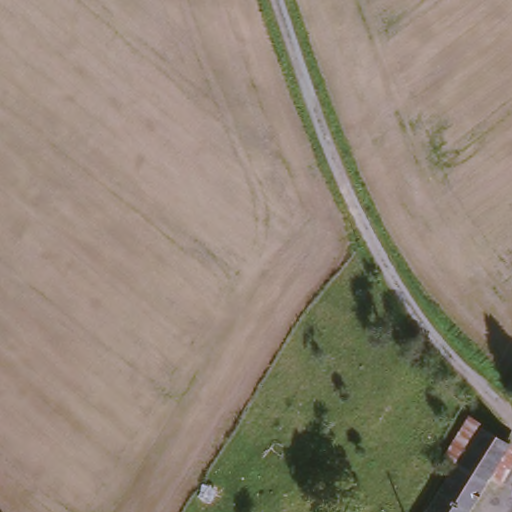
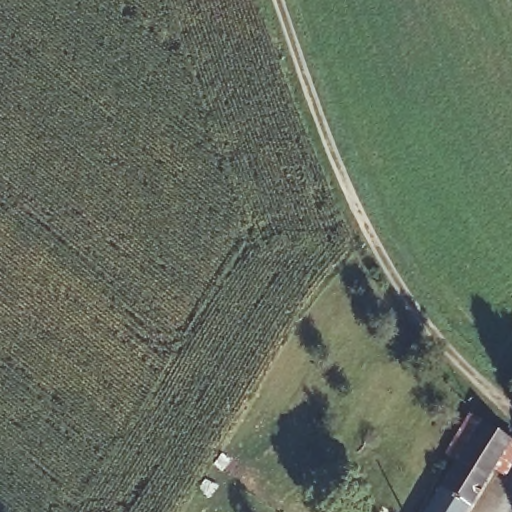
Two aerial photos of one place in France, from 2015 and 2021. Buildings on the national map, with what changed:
unchanged [(459,457),(446,451),(469,414),(482,422),(511,437),(465,512),(426,512),(459,457)]

